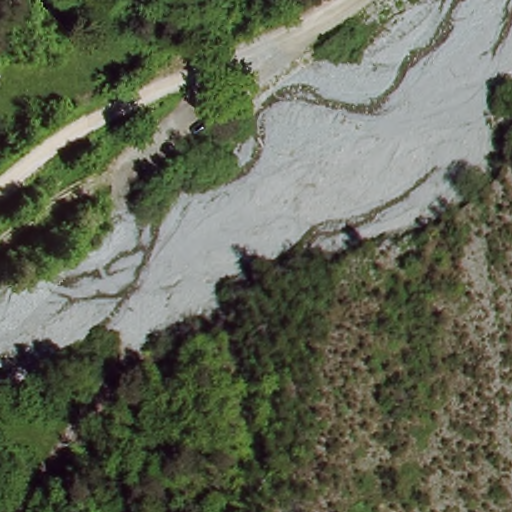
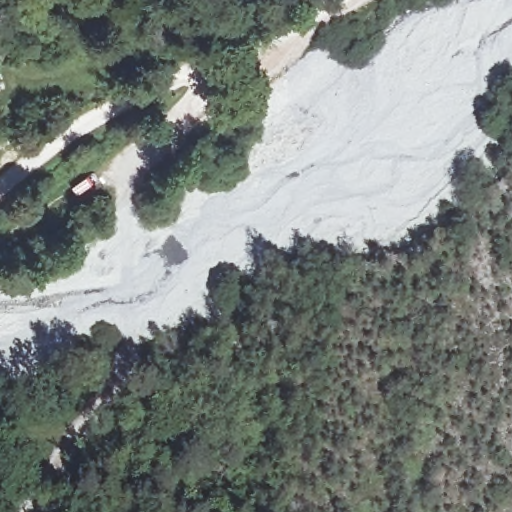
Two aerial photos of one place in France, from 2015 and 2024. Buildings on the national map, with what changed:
unchanged [(0,81),(0,77),(1,81),(0,81)]

